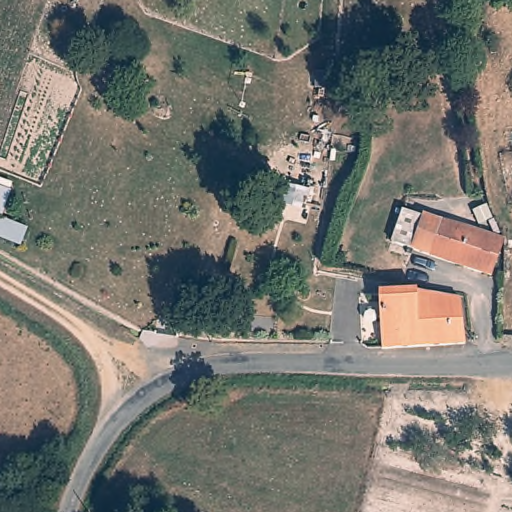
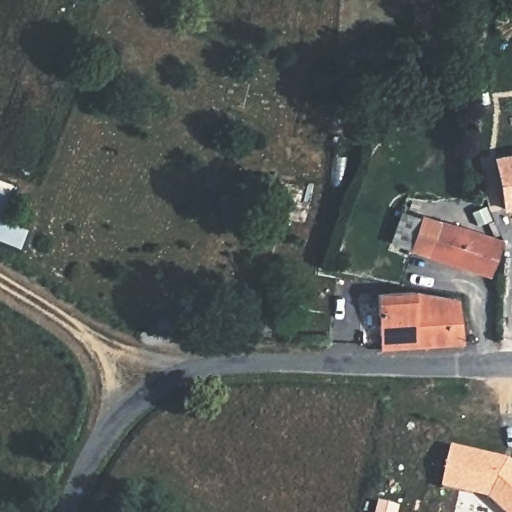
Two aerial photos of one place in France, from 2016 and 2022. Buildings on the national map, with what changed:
new [(512,153),(512,210),(505,211),(493,156),(512,153)]
demolished [(501,158),(512,157),(512,208),(509,209),(504,185),(499,158),(501,158)]
unchanged [(1,218),(27,227),(19,248),(0,241),(0,178),(14,182),(1,218)]
unchanged [(308,190),(304,205),(281,200),(284,185),(308,190)]
unchanged [(492,229),(489,230),(478,235),(472,222),(486,215),(489,222),(492,229)]
unchanged [(421,228),(422,225),(474,242),(489,247),(504,252),(491,286),(429,266),(391,253),(402,221),(421,228)]
unchanged [(416,292),(459,299),(460,309),(465,344),(381,349),(378,294),(416,292)]
new [(453,446),(511,459),(512,460),(512,512),(505,512),(489,498),(443,488),(453,446)]

